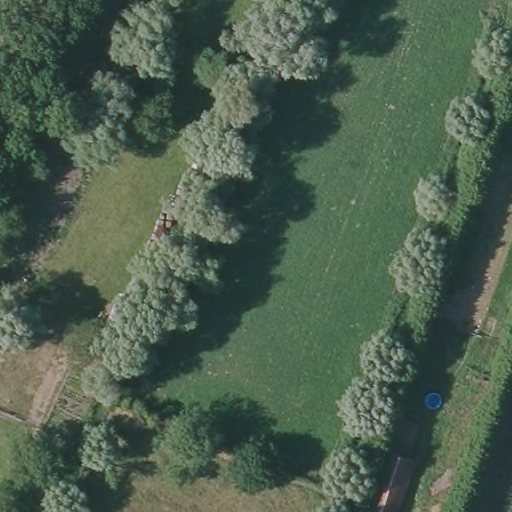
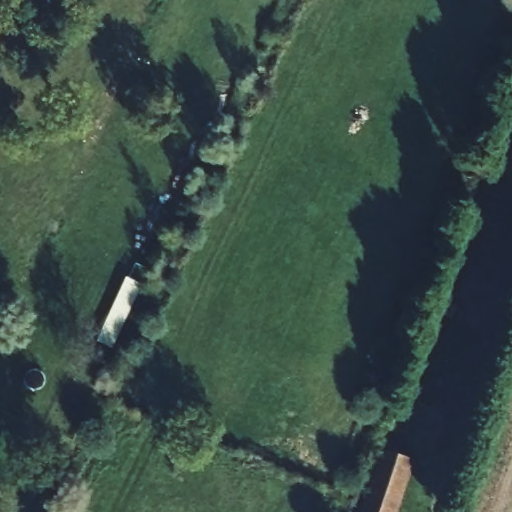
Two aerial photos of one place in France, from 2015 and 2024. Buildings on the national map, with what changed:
unchanged [(411,455),(391,512),(363,512),(386,446),(411,455)]

